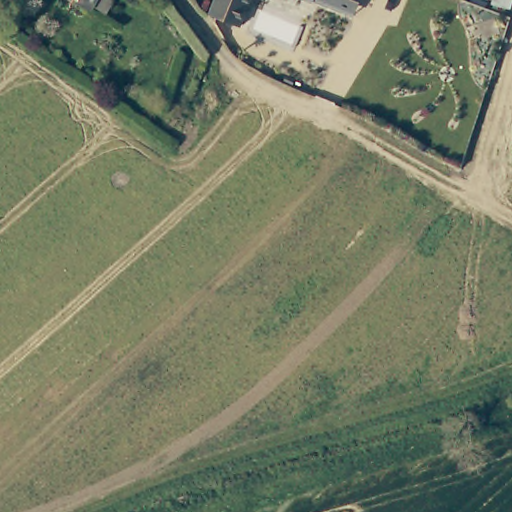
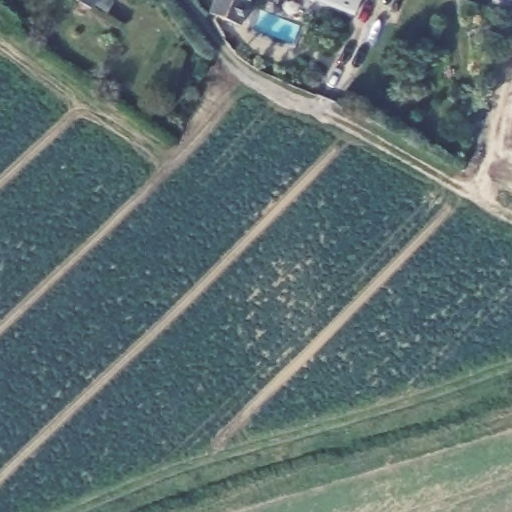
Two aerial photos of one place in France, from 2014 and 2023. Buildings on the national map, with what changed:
unchanged [(94,0),(89,10),(69,0),(94,0)]
unchanged [(242,0),(231,28),(201,17),(208,0),(242,0)]
unchanged [(303,0),(357,0),(348,19),(303,0)]

